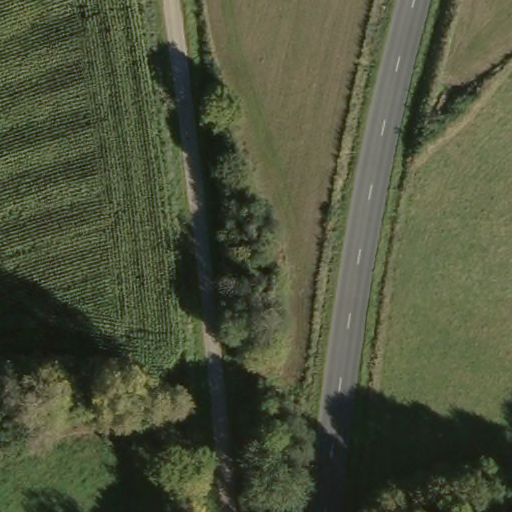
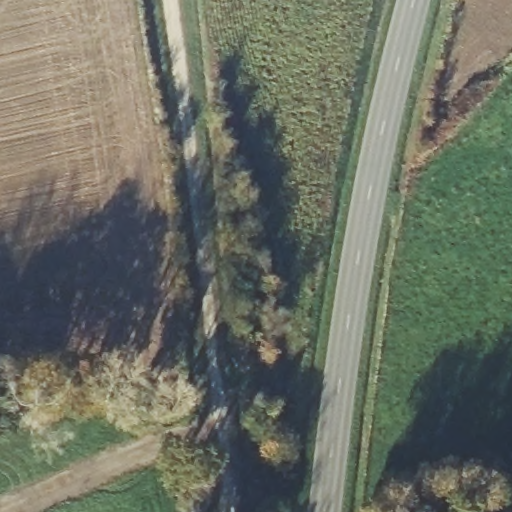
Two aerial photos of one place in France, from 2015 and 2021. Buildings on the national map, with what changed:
[]

